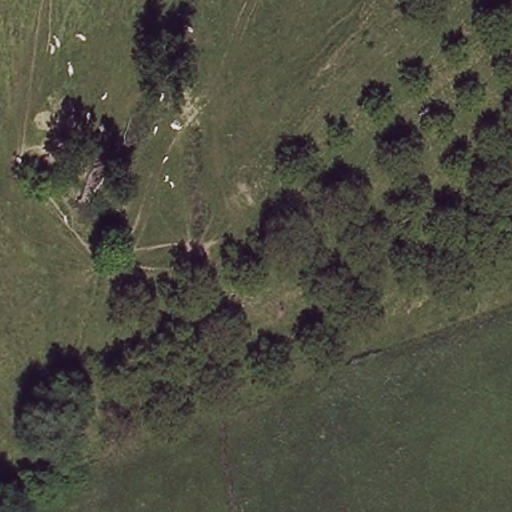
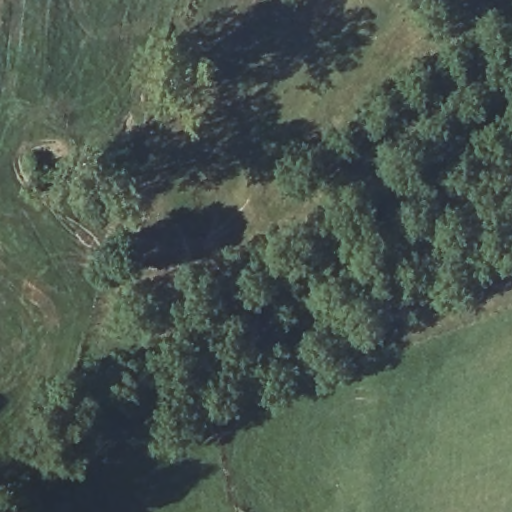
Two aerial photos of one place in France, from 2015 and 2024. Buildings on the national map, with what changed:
[]

